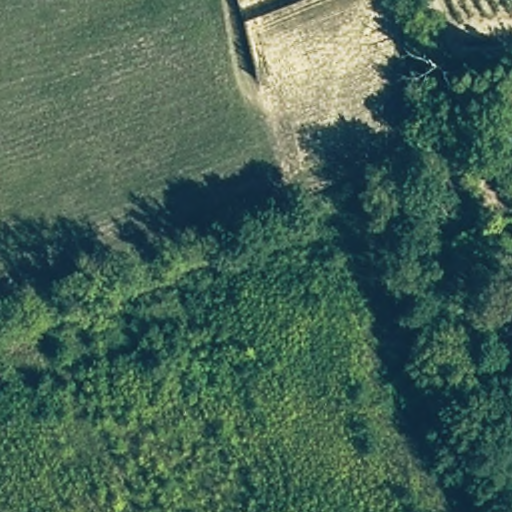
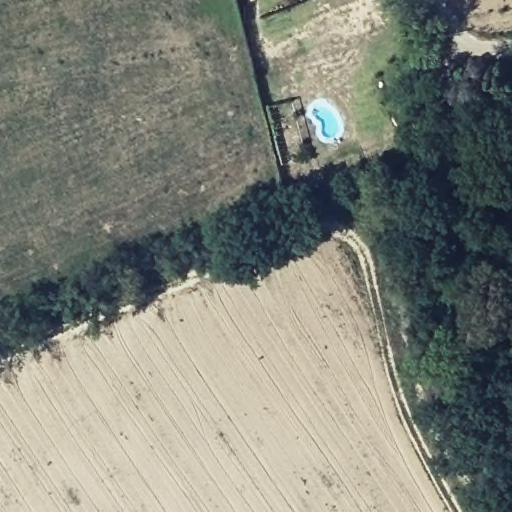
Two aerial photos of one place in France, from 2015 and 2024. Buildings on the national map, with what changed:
unchanged [(487,152),(484,119),(512,117),(512,151),(487,152)]

